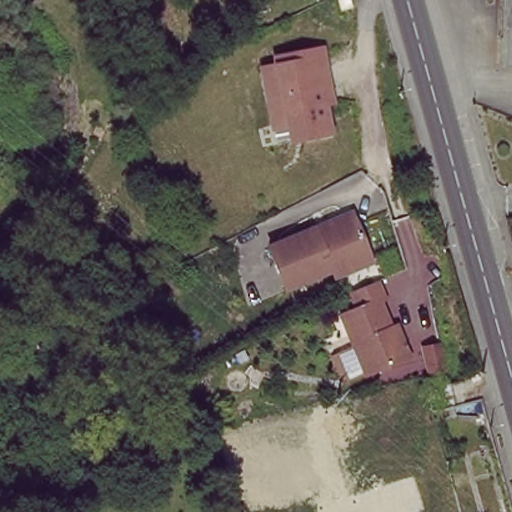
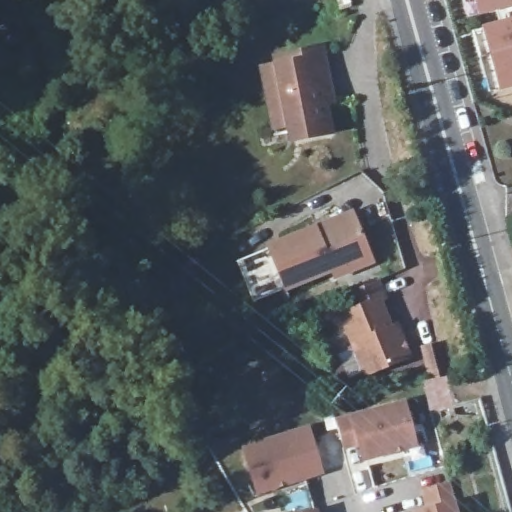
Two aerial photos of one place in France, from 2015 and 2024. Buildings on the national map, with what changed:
new [(497,91),(489,94),(472,33),(481,31),(480,29),(499,23),(496,14),(477,19),(475,16),(468,17),(463,0),(512,0),(512,91),(499,95),(497,91)]
demolished [(511,0),(512,0),(512,65),(510,65),(511,0)]
unchanged [(286,56),(286,48),(324,42),(336,103),(329,105),(334,131),(285,139),(283,130),(272,131),(258,60),(286,56)]
unchanged [(333,280),(330,273),(283,292),(267,250),(314,231),(351,216),(354,223),(371,265),(333,280)]
unchanged [(358,358),(340,313),(355,307),(349,291),(376,280),(377,280),(383,297),(379,300),(390,327),(395,325),(399,335),(407,356),(370,371),(364,373),(358,358)]
unchanged [(422,351),(438,348),(443,379),(429,382),(428,382),(422,351)]
unchanged [(169,407),(193,402),(196,422),(169,427),(169,407)]
new [(404,402),(415,445),(364,459),(359,443),(343,447),(336,421),(404,402)]
new [(307,429),(321,472),(257,492),(244,448),(307,429)]
new [(451,482),(455,501),(459,512),(413,512),(413,511),(427,507),(422,490),(451,482)]
new [(313,510),(314,512),(306,512),(313,510)]

